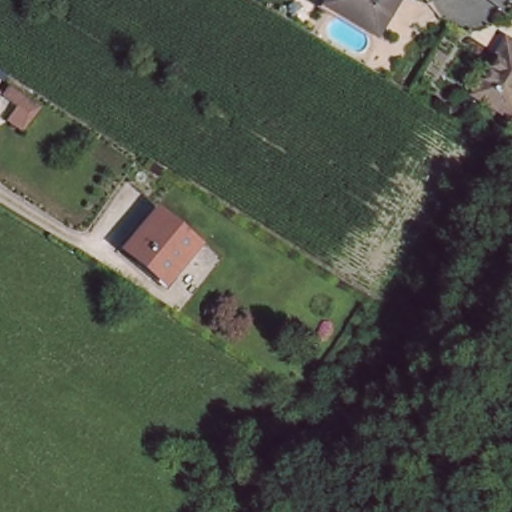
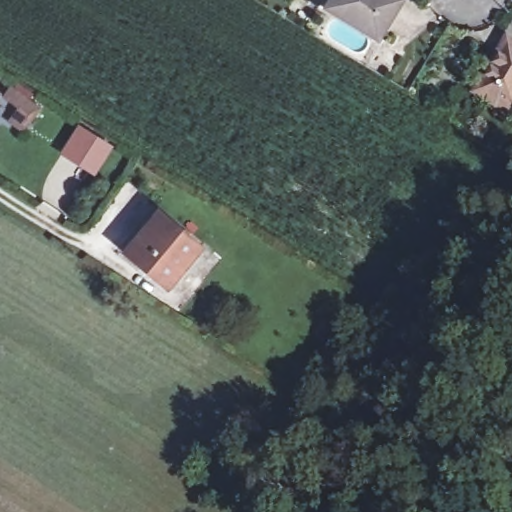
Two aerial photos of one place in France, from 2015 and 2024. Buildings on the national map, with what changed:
unchanged [(379,38),(333,10),(326,5),(329,0),(404,0),(379,38)]
unchanged [(498,101),(478,88),(510,37),(512,38),(512,109),(498,101)]
unchanged [(0,103),(0,98),(5,93),(28,112),(21,120),(0,103)]
new [(113,147),(94,175),(57,152),(76,122),(113,147)]
unchanged [(198,249),(165,291),(121,257),(155,215),(198,249)]

